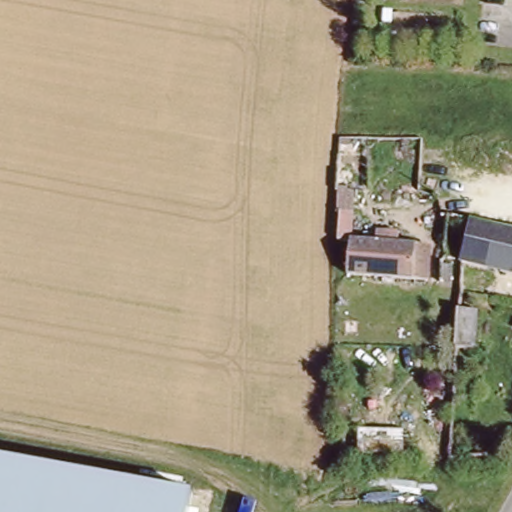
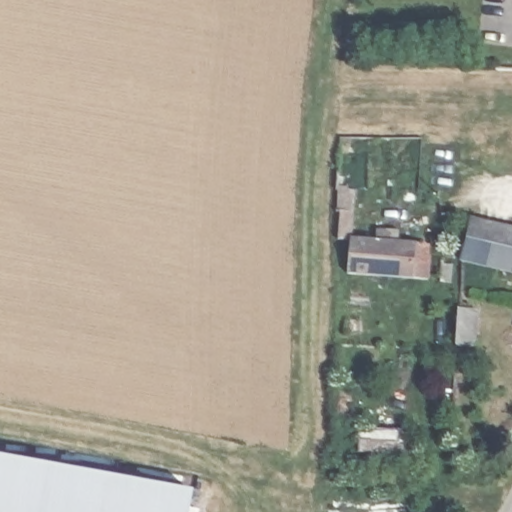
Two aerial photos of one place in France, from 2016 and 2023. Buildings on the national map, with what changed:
unchanged [(352,235),(339,234),(342,207),(355,208),(352,235)]
unchanged [(469,214),(495,221),(485,265),(459,259),(469,214)]
unchanged [(495,221),(512,225),(512,271),(485,265),(495,221)]
unchanged [(431,278),(415,277),(349,270),(352,235),(419,242),(435,243),(431,278)]
unchanged [(480,312),(476,347),(458,346),(460,311),(480,312)]
unchanged [(402,456),(356,456),(357,427),(404,429),(402,456)]
unchanged [(0,458),(191,492),(187,512),(0,512),(0,458)]

